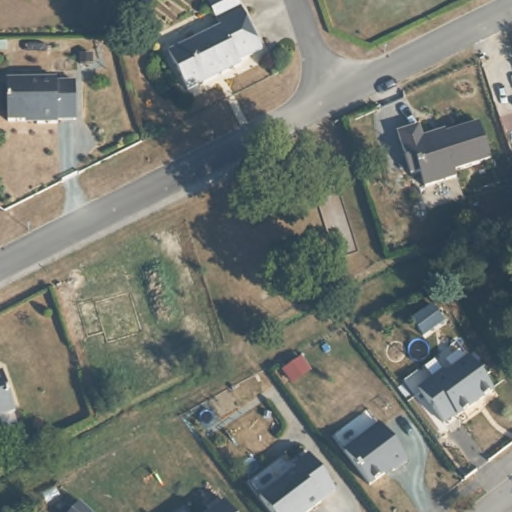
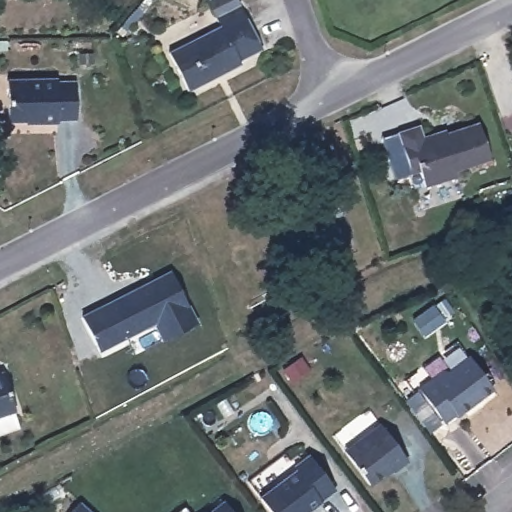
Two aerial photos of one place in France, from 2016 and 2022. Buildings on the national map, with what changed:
unchanged [(220,15),(245,4),(265,49),(243,59),(245,61),(188,87),(169,48),(224,24),(220,15)]
unchanged [(56,75),(55,77),(75,79),(74,116),(56,116),(55,119),(32,119),(32,116),(6,115),(7,75),(56,75)]
unchanged [(409,122),(412,131),(424,127),(434,129),(469,120),(480,155),(447,164),(449,170),(415,179),(412,165),(402,167),(392,126),(409,122)]
new [(169,270),(197,322),(161,341),(153,325),(98,352),(81,315),(169,270)]
unchanged [(470,358),(494,391),(458,418),(457,416),(445,425),(420,391),(444,372),(451,373),(470,358)]
unchanged [(3,375),(11,410),(0,414),(0,376),(3,375)]
new [(419,395),(442,427),(430,436),(407,405),(419,395)]
unchanged [(369,483),(345,450),(381,423),(407,458),(393,470),(391,467),(369,483)]
unchanged [(294,470),(310,459),(336,493),(321,505),(313,512),(268,512),(260,501),(296,474),(294,470)]
unchanged [(233,512),(209,512),(225,500),(233,512)]
unchanged [(74,512),(81,505),(88,512),(74,512)]

